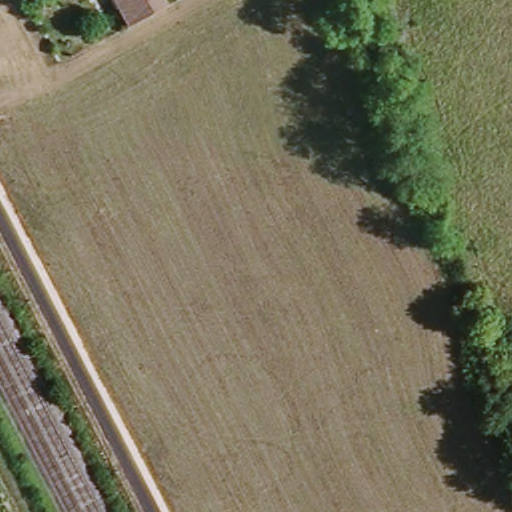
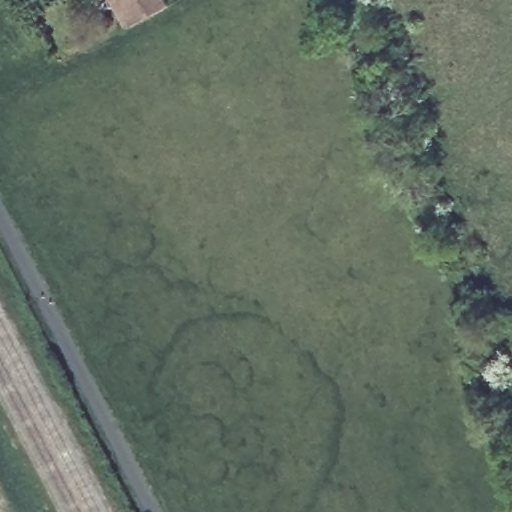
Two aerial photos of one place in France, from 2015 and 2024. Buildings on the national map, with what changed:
unchanged [(112,0),(165,0),(168,5),(127,27),(112,0)]

